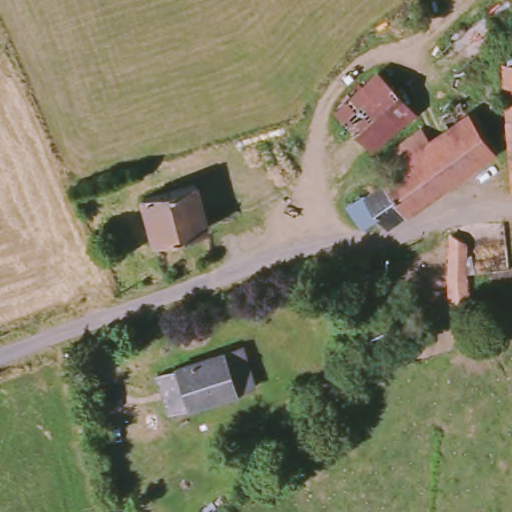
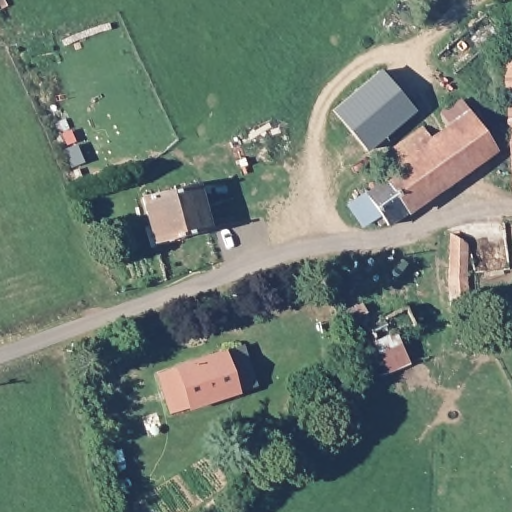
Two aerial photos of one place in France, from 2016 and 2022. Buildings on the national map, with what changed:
unchanged [(512,63),(512,133),(508,63),(512,63)]
unchanged [(375,148),(340,110),(380,71),(415,108),(375,148)]
unchanged [(365,185),(383,172),(392,166),(381,150),(422,120),(431,134),(451,119),(445,109),(462,97),(493,139),(404,202),(386,215),(365,185)]
unchanged [(200,183),(210,227),(157,240),(147,197),(200,183)]
unchanged [(475,248),(472,302),(450,300),(451,236),(475,248)]
unchanged [(405,316),(414,333),(347,365),(343,346),(405,316)]
unchanged [(170,381),(189,374),(237,358),(250,395),(204,412),(185,419),(170,381)]

